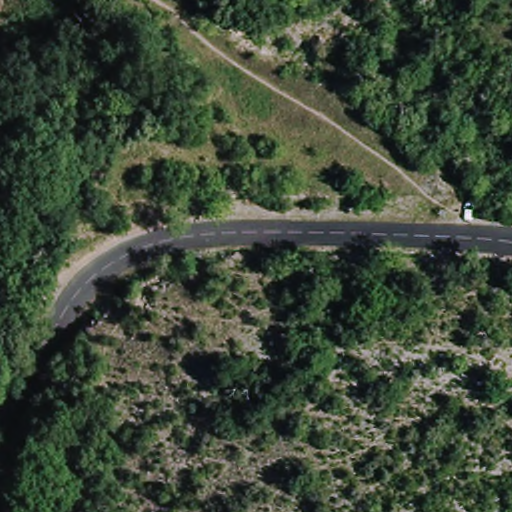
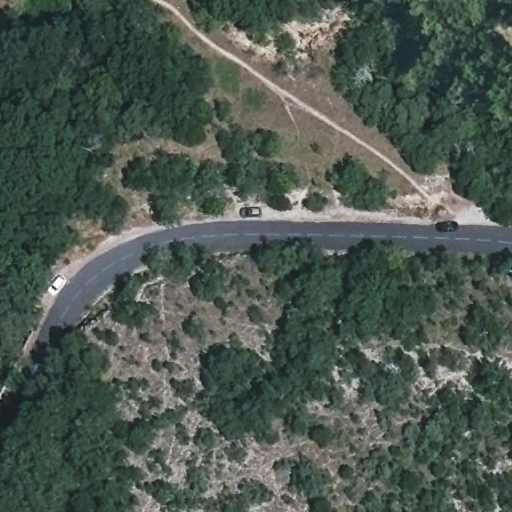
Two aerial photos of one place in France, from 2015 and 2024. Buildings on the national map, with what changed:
[]

